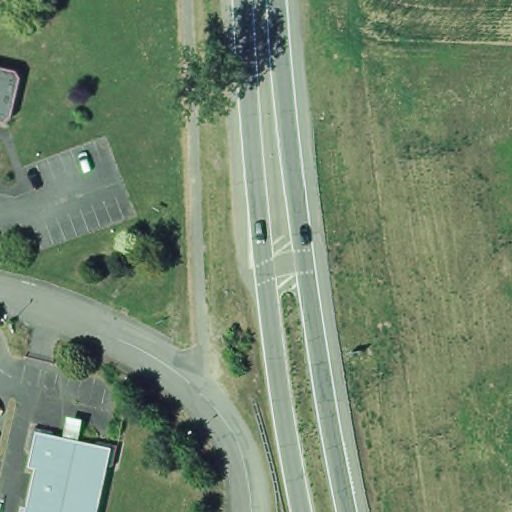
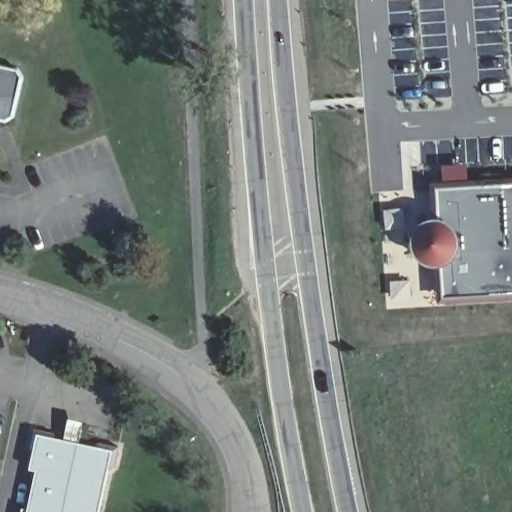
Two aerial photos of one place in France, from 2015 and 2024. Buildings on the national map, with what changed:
unchanged [(18,81),(10,121),(0,130),(0,70),(10,73),(18,81)]
new [(443,183),(442,166),(467,164),(469,182),(495,182),(512,181),(512,293),(442,298),(440,266),(449,263),(454,259),(458,251),(459,242),(457,233),(453,227),(444,220),(437,219),(437,217),(434,184),(443,183)]
new [(406,205),(408,230),(386,233),(382,209),(406,205)]
new [(414,237),(418,225),(427,220),(437,217),(437,219),(444,220),(453,227),(457,233),(459,242),(458,251),(454,259),(449,263),(440,266),(431,266),(422,261),(416,254),(413,245),(414,237)]
new [(389,279),(410,278),(411,302),(389,302),(389,279)]
unchanged [(32,476),(25,474),(28,460),(24,453),(29,434),(49,438),(53,444),(88,451),(93,448),(113,452),(109,472),(103,476),(95,512),(24,512),(32,476)]

